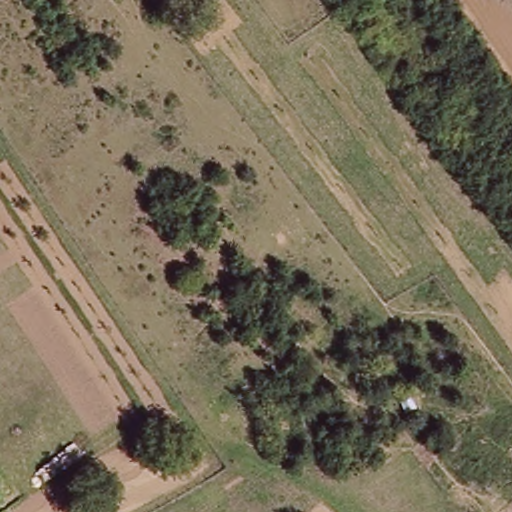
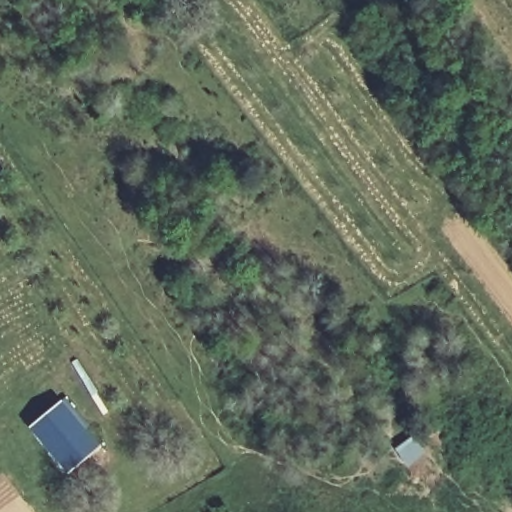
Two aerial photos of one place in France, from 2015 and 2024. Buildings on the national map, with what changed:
new [(62,397),(101,445),(66,473),(27,426),(62,397)]

